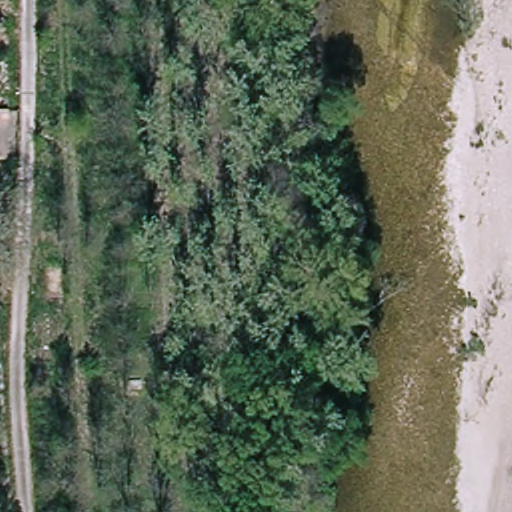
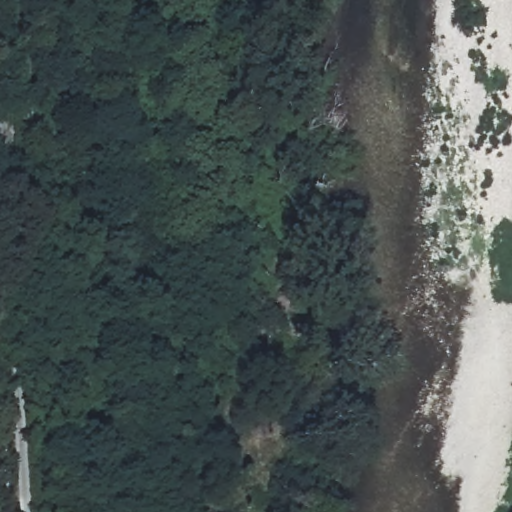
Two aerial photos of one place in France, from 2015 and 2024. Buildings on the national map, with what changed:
unchanged [(11,162),(0,161),(0,113),(10,114),(11,162)]

